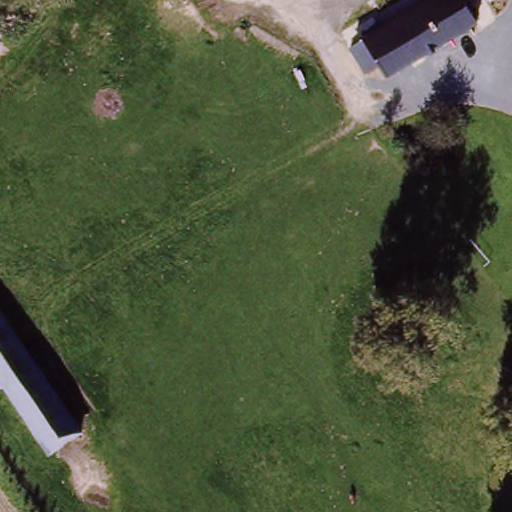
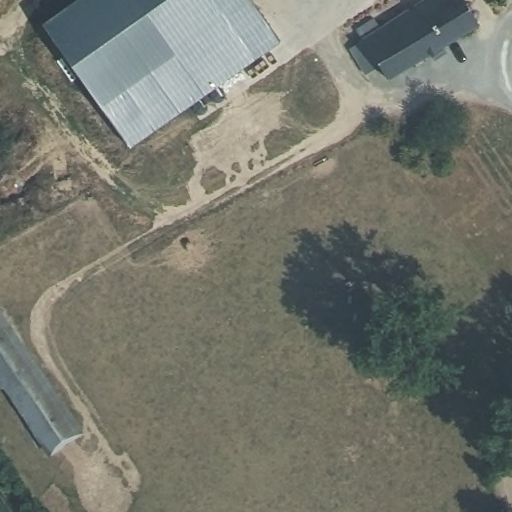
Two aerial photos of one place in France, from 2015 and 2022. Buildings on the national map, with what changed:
new [(279,41),(132,149),(43,24),(77,0),(250,0),(279,41)]
unchanged [(351,53),(364,44),(358,34),(372,26),(377,35),(433,0),(462,0),(477,24),(387,81),(380,69),(367,77),(351,53)]
unchanged [(0,316),(79,430),(49,451),(33,429),(5,386),(0,380),(0,316)]
unchanged [(501,371),(512,360),(512,382),(501,371)]

